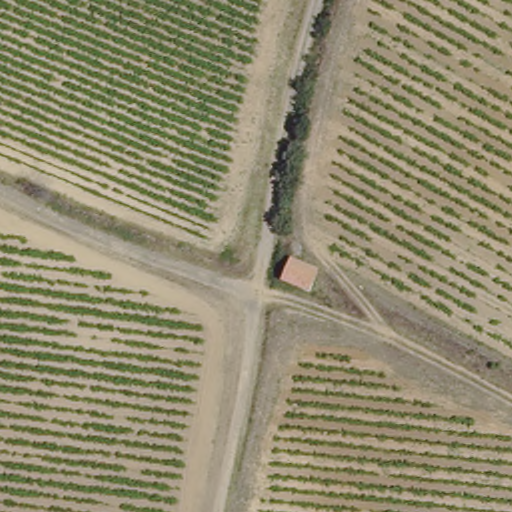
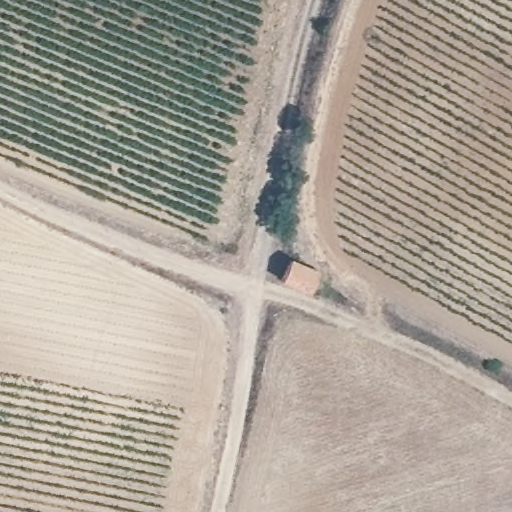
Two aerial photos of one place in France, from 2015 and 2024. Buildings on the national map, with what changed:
unchanged [(340,263),(335,298),(278,294),(287,255),(340,263)]

